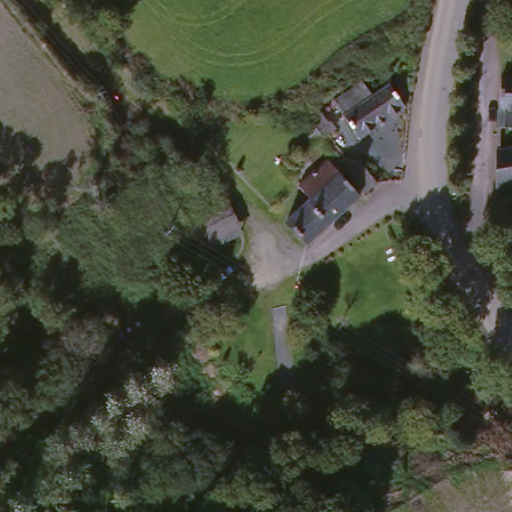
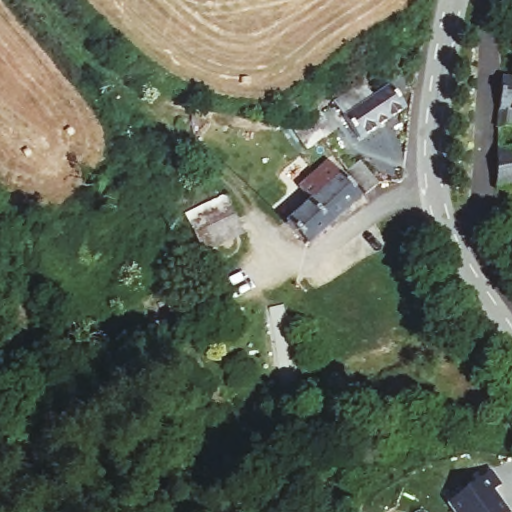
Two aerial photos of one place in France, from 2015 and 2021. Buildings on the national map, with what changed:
unchanged [(512,134),(496,132),(495,126),(495,100),(496,76),(512,79),(512,134)]
unchanged [(330,101),(361,80),(373,96),(394,82),(399,112),(389,119),(357,141),(330,101)]
unchanged [(512,186),(496,191),(490,158),(512,153),(512,186)]
unchanged [(314,195),(306,183),(329,166),(356,204),(301,243),(281,219),(314,195)]
unchanged [(186,265),(172,228),(221,205),(246,238),(186,265)]
new [(490,470),(501,484),(493,491),(509,512),(452,512),(445,503),(490,470)]

